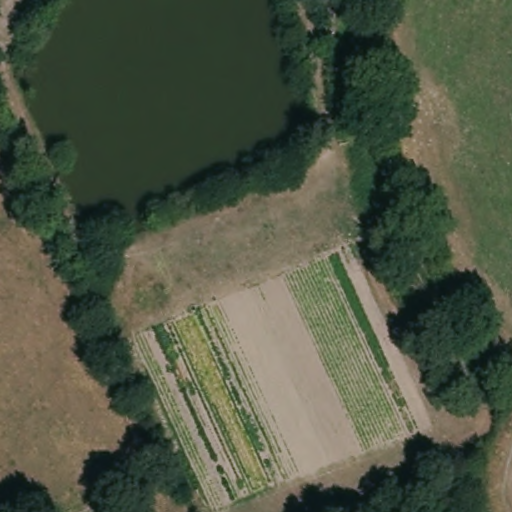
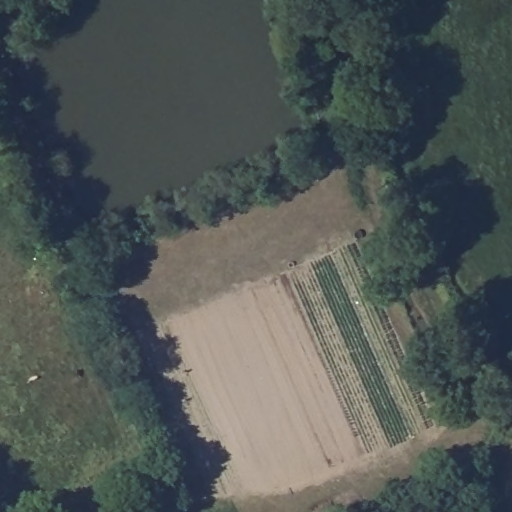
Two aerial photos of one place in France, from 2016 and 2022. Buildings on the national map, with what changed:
[]

